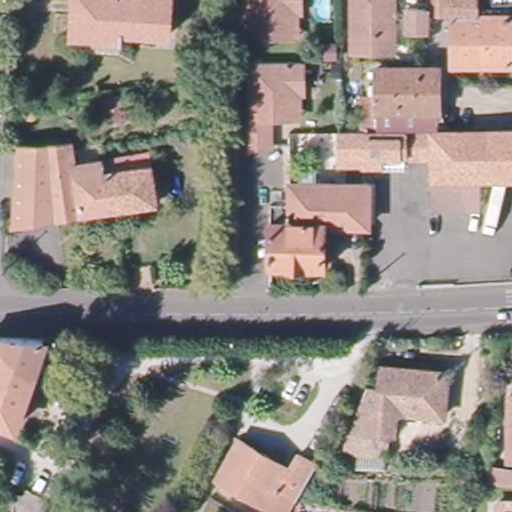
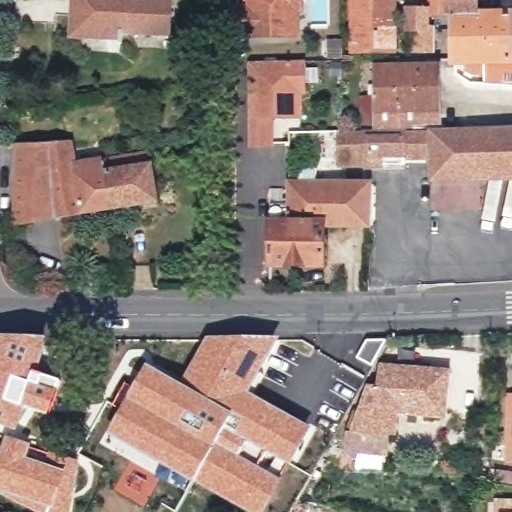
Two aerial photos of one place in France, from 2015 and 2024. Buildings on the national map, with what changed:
unchanged [(76,0),(171,0),(169,36),(123,31),(123,39),(87,36),(74,35),(75,16),(76,0)]
unchanged [(251,36),(233,35),(231,5),(250,6),(250,0),(304,0),(303,11),(300,11),(299,35),(287,35),(251,36)]
unchanged [(355,52),(355,0),(397,0),(397,37),(397,52),(375,52),(355,52)]
unchanged [(433,0),(482,0),(482,18),(457,19),(451,20),(451,14),(433,13),(433,0)]
unchanged [(430,8),(430,30),(413,30),(413,7),(430,8)]
unchanged [(457,19),(482,18),(490,19),(507,17),(512,17),(512,64),(458,65),(457,19)]
unchanged [(284,116),(264,116),(264,144),(247,144),(246,60),(297,59),(297,61),(301,61),(301,91),(297,91),(297,116),(284,116)]
unchanged [(436,106),(377,105),(378,61),(436,62),(436,106)]
unchanged [(337,128),(360,128),(401,128),(401,155),(401,159),(360,159),(336,159),(337,128)]
unchanged [(512,175),(477,175),(477,205),(431,204),(431,176),(429,176),(429,156),(401,155),(401,128),(512,129),(512,175)]
unchanged [(74,147),(77,167),(150,155),(158,206),(16,227),(20,148),(74,147)]
unchanged [(327,223),(293,222),(294,205),(294,189),(294,181),(373,182),(372,224),(327,223)]
unchanged [(277,205),(294,205),(293,222),(327,223),(327,264),(275,263),(277,205)]
new [(108,437),(105,435),(119,408),(112,405),(125,382),(132,387),(145,363),(179,382),(205,335),(279,337),(276,345),(251,392),(313,427),(288,467),(264,512),(246,512),(159,465),(154,472),(104,443),(108,437)]
unchanged [(15,426),(0,421),(0,337),(46,338),(15,426)]
unchanged [(352,431),(368,387),(377,387),(381,365),(446,370),(442,415),(406,413),(402,434),(352,431)]
unchanged [(511,400),(512,400),(512,447),(510,447),(511,400)]
unchanged [(401,455),(355,455),(347,447),(352,431),(402,434),(401,455)]
new [(6,436),(80,460),(71,512),(38,512),(0,494),(0,452),(6,436)]
demolished [(276,487),(266,506),(216,475),(238,439),(288,468),(297,453),(315,464),(295,498),(276,487)]
unchanged [(512,466),(512,481),(491,478),(493,463),(512,466)]
unchanged [(499,502),(512,502),(512,512),(499,512),(499,502)]

